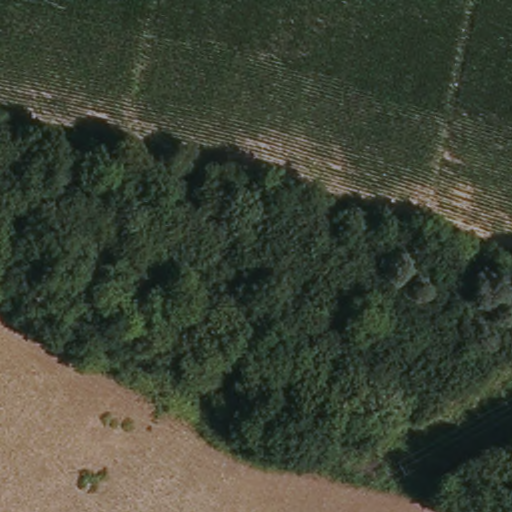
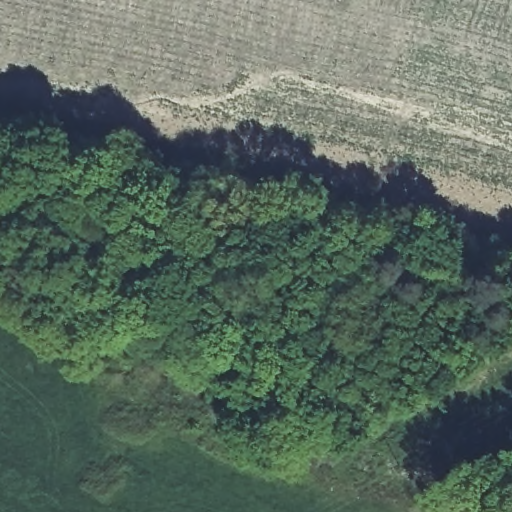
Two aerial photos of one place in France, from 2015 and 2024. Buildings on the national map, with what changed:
[]

